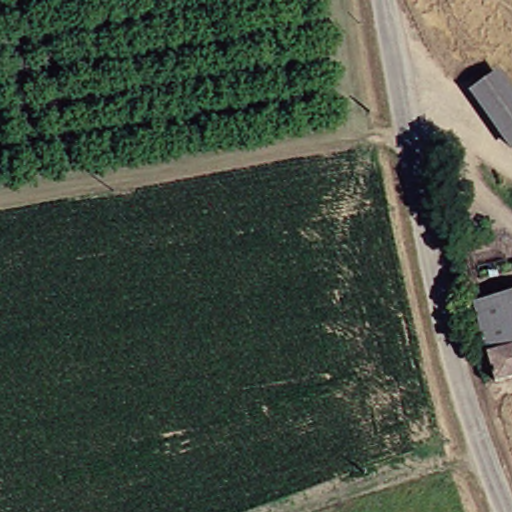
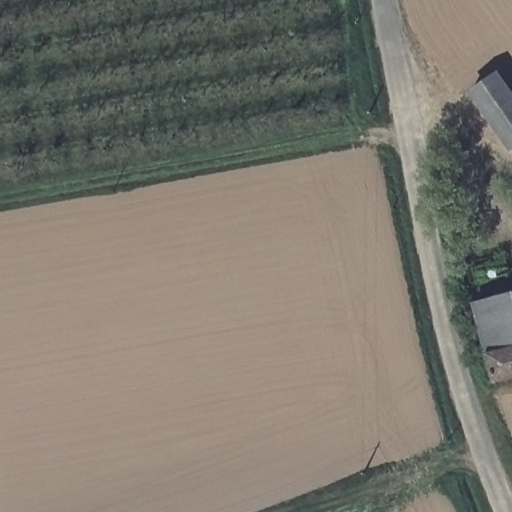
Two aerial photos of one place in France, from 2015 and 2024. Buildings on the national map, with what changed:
unchanged [(512,111),(512,138),(500,146),(462,92),(488,75),(512,111)]
unchanged [(512,294),(512,373),(481,381),(466,306),(512,294)]

